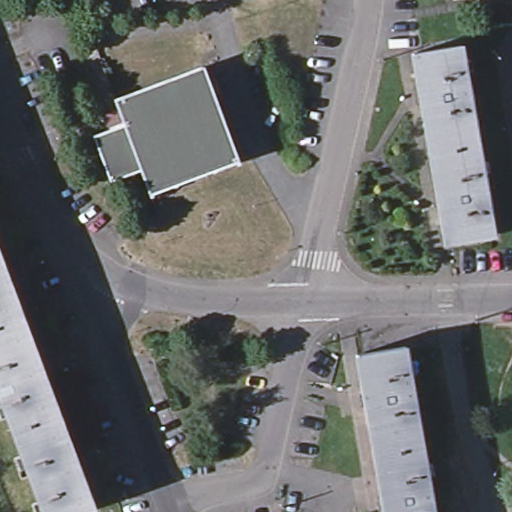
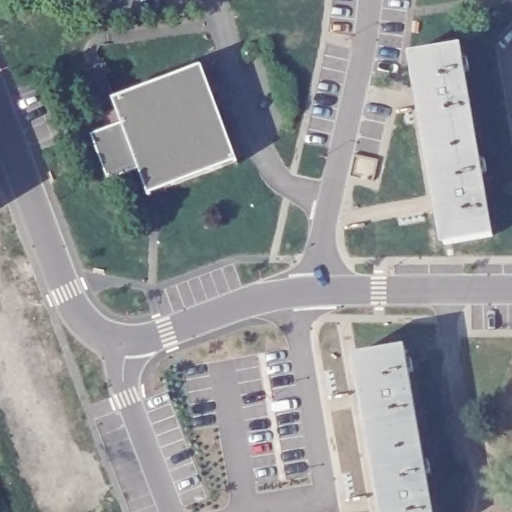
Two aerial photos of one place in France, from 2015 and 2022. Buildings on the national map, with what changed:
unchanged [(412,53),(460,45),(490,236),(444,245),(412,53)]
unchanged [(122,119),(114,95),(201,62),(238,159),(149,192),(139,165),(108,176),(92,130),(122,119)]
demolished [(0,268),(91,512),(59,512),(7,419),(0,400),(0,268)]
unchanged [(403,344),(432,512),(384,512),(357,352),(403,344)]
demolished [(59,512),(42,512),(7,419),(59,512)]

